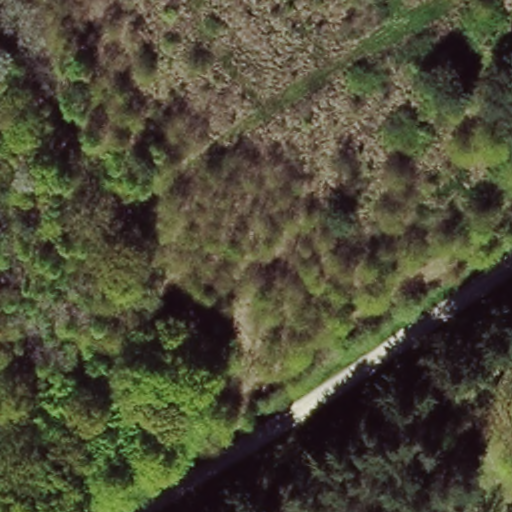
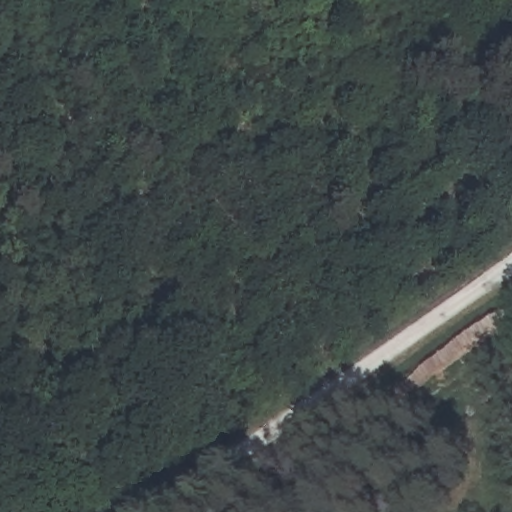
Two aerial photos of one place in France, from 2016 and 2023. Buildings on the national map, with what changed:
[]

